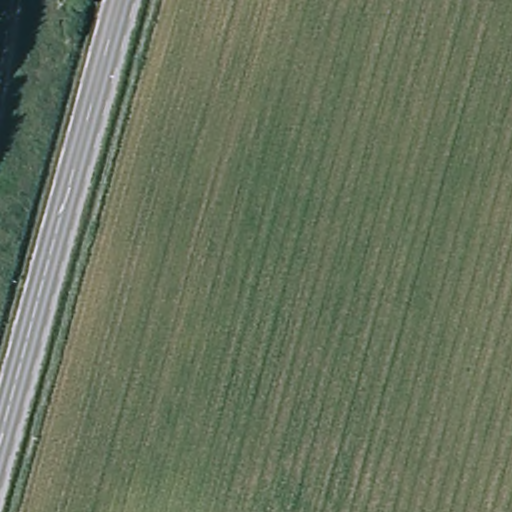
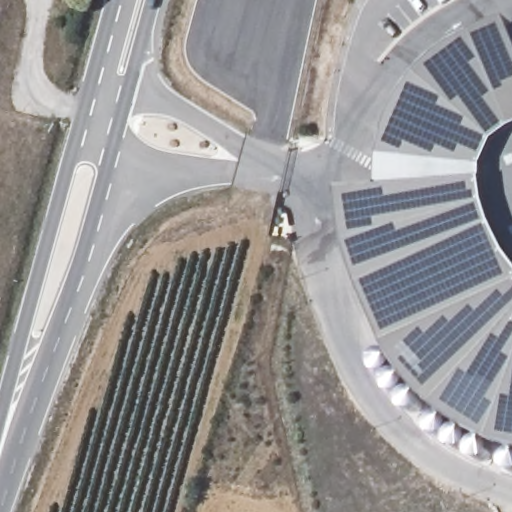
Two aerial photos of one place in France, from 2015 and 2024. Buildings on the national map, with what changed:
new [(461,430),(438,412),(415,390),(397,365),(388,348),(362,288),(352,261),(348,244),(343,212),(342,193),(382,190),(383,160),(390,131),(400,106),(416,82),(438,60),(458,45),(481,35),(510,22),(512,25),(512,451),(490,443),(461,430)]

